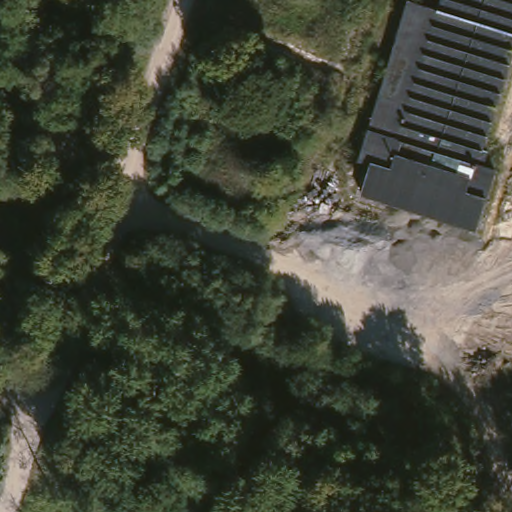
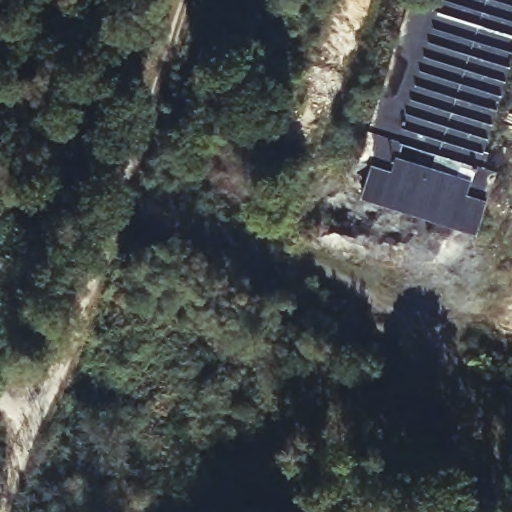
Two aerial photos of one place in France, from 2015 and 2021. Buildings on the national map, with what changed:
unchanged [(500,170),(476,232),(361,195),(371,162),(357,157),(407,1),(437,10),(440,0),(512,0),(512,47),(476,162),(500,170)]

